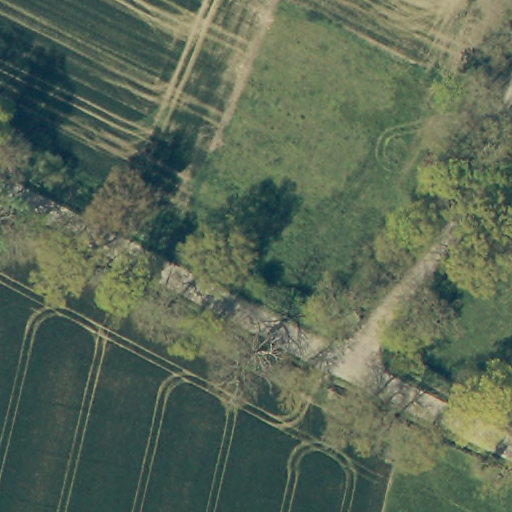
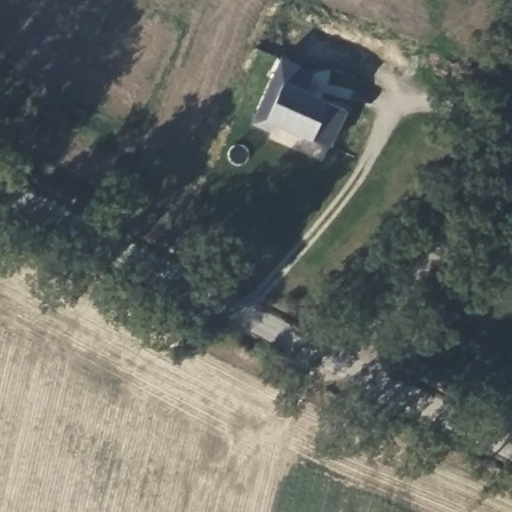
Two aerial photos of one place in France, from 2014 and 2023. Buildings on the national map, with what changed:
new [(251,124),(280,57),(314,72),(306,90),(330,101),(347,111),(331,147),(312,138),(311,141),(274,124),(270,132),(251,124)]

